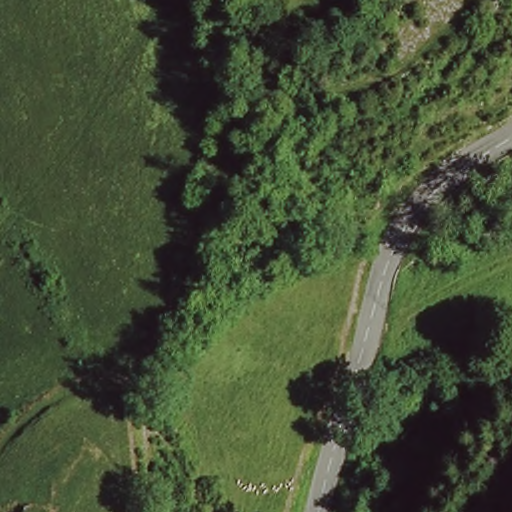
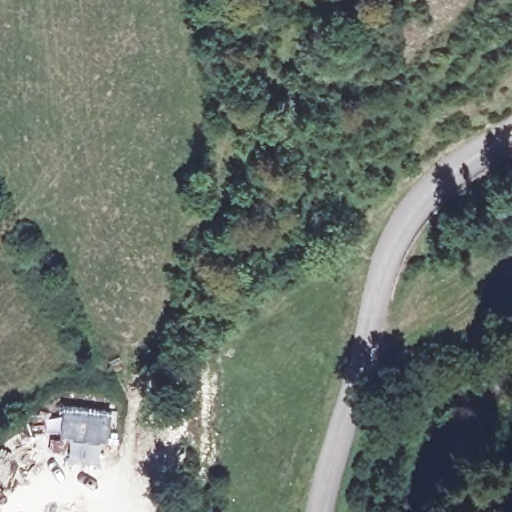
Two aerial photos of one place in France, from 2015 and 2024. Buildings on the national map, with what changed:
new [(65,461),(66,439),(55,437),(60,405),(108,411),(105,443),(101,443),(99,464),(65,461)]

